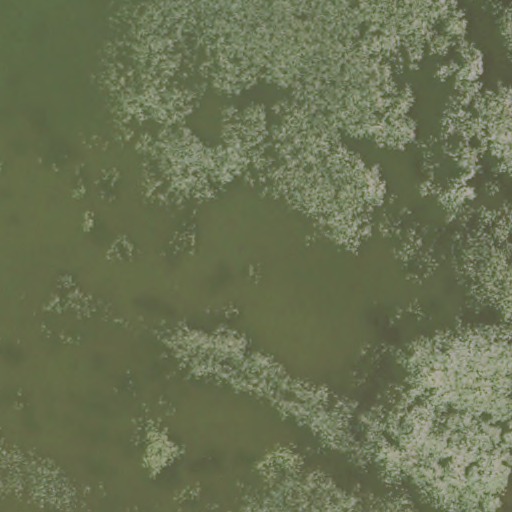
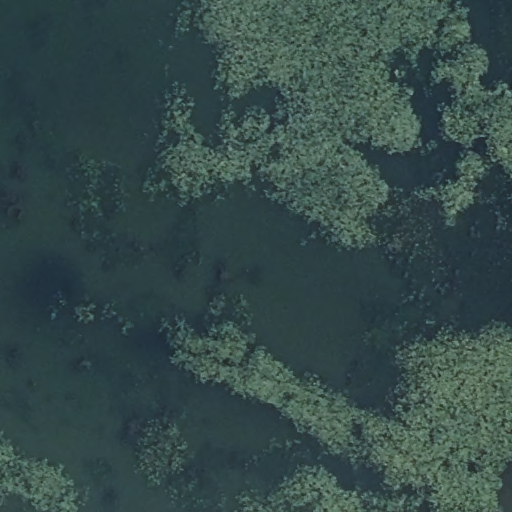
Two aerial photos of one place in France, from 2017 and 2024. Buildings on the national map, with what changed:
[]

